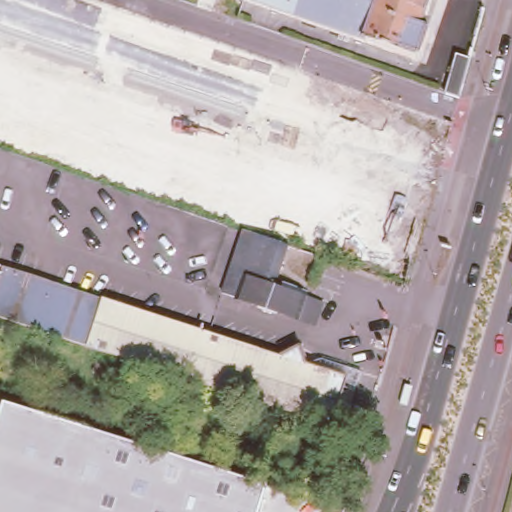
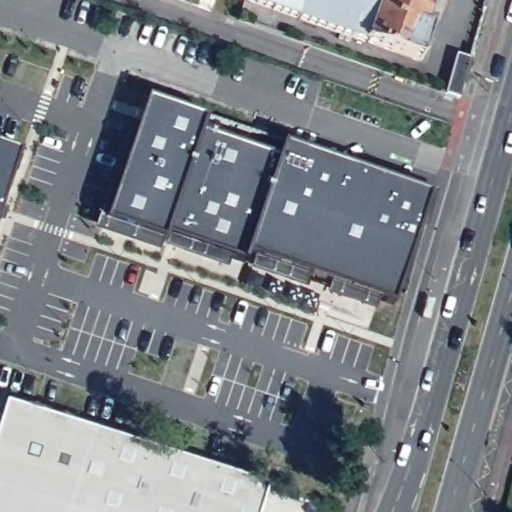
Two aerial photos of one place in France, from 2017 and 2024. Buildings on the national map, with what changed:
unchanged [(219,8),(198,0),(222,0),(219,8)]
unchanged [(426,26),(435,30),(425,59),(260,0),(435,0),(426,26)]
unchanged [(469,60),(458,99),(444,94),(454,56),(469,60)]
new [(394,304),(378,299),(374,313),(326,296),(329,281),(308,273),(304,288),(250,270),(254,257),(246,256),(244,262),(231,257),(226,270),(163,248),(159,247),(159,251),(93,230),(105,190),(113,198),(147,99),(206,119),(204,124),(281,149),(283,143),(431,194),(394,304)]
new [(0,144),(21,151),(0,212),(0,144)]
demolished [(323,301),(314,321),(221,288),(242,226),(288,242),(273,283),(323,301)]
demolished [(283,342),(294,357),(305,350),(351,367),(331,426),(0,316),(0,258),(263,349),(283,342)]
unchanged [(269,482),(259,512),(0,512),(0,412),(5,397),(90,424),(269,482)]

